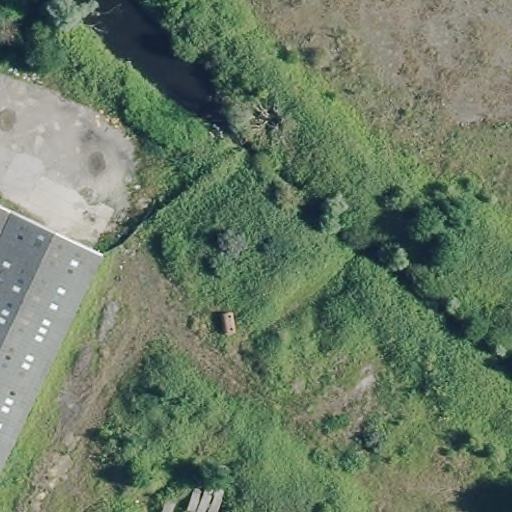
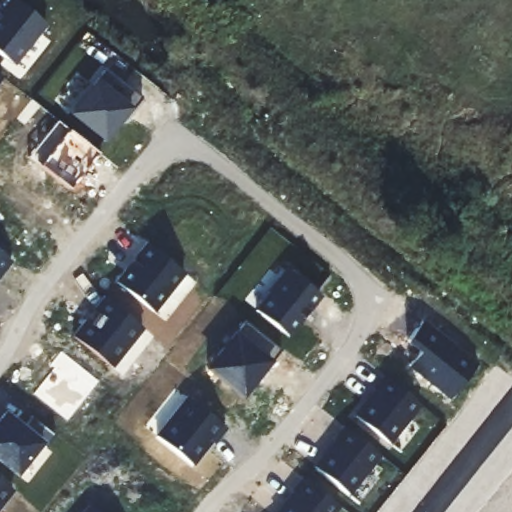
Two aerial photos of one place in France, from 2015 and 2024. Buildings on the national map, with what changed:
new [(47,25),(15,64),(0,52),(0,12),(9,0),(14,0),(47,25)]
new [(142,98),(131,111),(128,109),(103,140),(68,114),(96,78),(103,69),(142,98)]
new [(2,77),(0,80),(0,76),(2,77)]
new [(67,129),(96,152),(66,189),(37,166),(26,157),(57,120),(67,129)]
demolished [(41,224),(103,254),(91,281),(52,364),(10,454),(0,476),(0,205),(41,224)]
new [(183,273),(153,312),(115,281),(147,241),(183,273)]
new [(12,261),(0,277),(0,252),(12,261)]
new [(322,297),(291,335),(256,308),(287,270),(322,297)]
new [(142,328),(112,368),(73,336),(103,297),(142,328)]
new [(408,366),(420,351),(406,340),(422,320),(477,362),(448,399),(408,366)]
new [(280,350),(272,362),(242,397),(205,367),(232,334),(243,322),(280,350)]
new [(98,380),(67,422),(34,394),(53,369),(50,366),(61,351),(98,380)]
new [(420,405),(391,444),(355,415),(384,376),(420,405)]
new [(226,428),(214,444),(211,441),(193,463),(156,434),(187,395),(226,428)]
new [(25,427),(31,418),(53,435),(43,447),(41,443),(15,475),(0,463),(0,415),(5,409),(25,427)]
new [(380,455),(351,493),(315,466),(345,427),(380,455)]
new [(334,512),(276,512),(303,477),(339,506),(334,512)]
new [(0,508),(0,480),(13,490),(0,508)]
new [(85,512),(89,506),(96,512),(85,512)]

